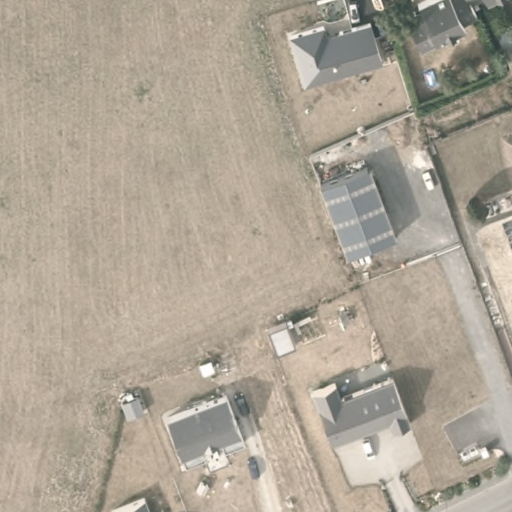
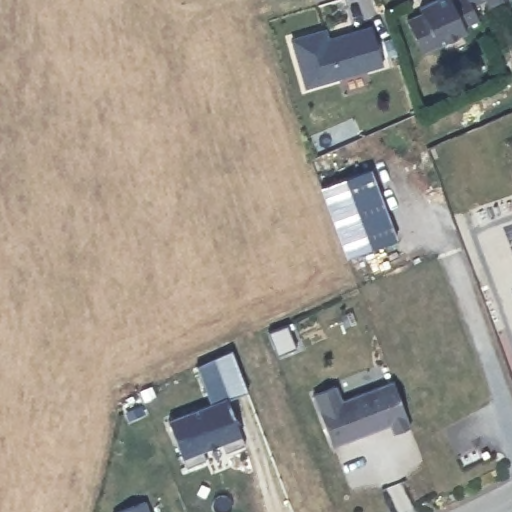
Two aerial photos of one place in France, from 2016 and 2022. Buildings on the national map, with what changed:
unchanged [(475,17),(463,23),(465,27),(423,48),(408,14),(422,6),(419,3),(423,0),(467,0),(468,2),(475,17)]
unchanged [(467,0),(473,0),(468,2),(467,0)]
unchanged [(307,89),(294,40),(328,31),(330,36),(373,24),(384,66),(307,89)]
unchanged [(371,170),(396,240),(347,259),(321,189),(371,170)]
new [(211,407),(195,365),(230,349),(246,391),(225,398),(226,401),(211,407)]
unchanged [(395,434),(391,424),(332,445),(314,394),(336,386),(341,401),(394,382),(400,400),(410,428),(395,434)]
unchanged [(226,401),(243,449),(224,456),(220,446),(201,453),(205,463),(185,470),(167,423),(226,401)]
unchanged [(142,503),(145,512),(117,512),(142,503)]

